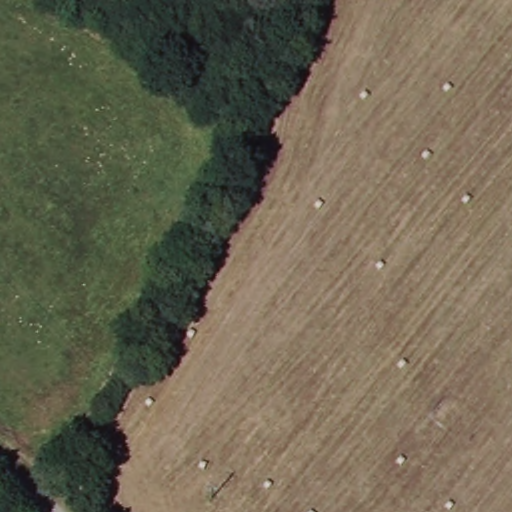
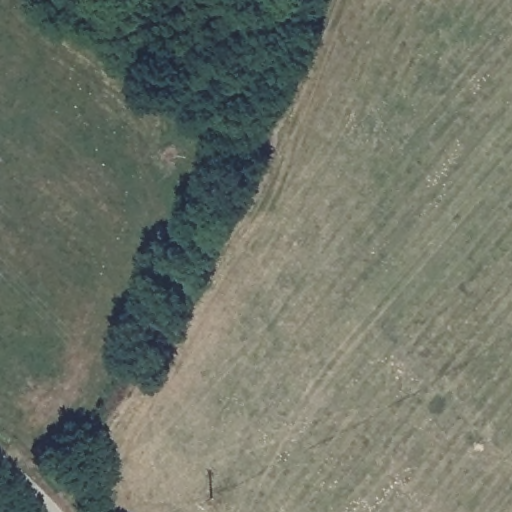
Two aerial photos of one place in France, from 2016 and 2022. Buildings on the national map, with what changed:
[]

